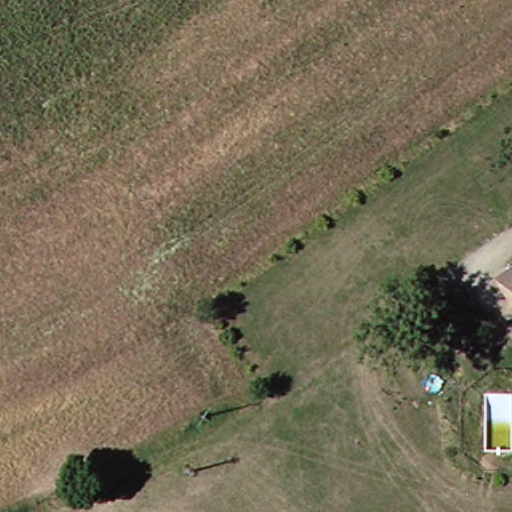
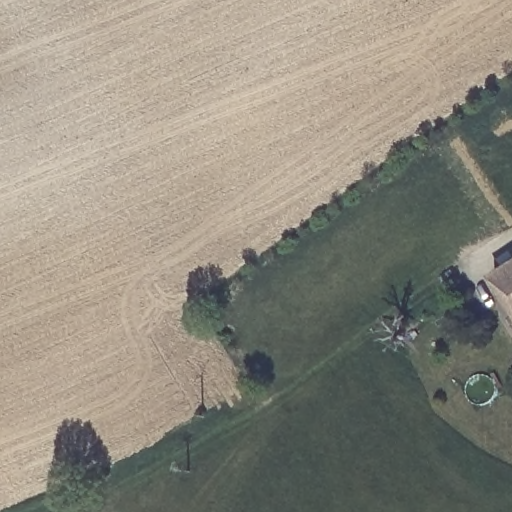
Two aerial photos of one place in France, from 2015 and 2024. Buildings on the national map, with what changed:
unchanged [(512,319),(488,282),(512,268),(512,319)]

